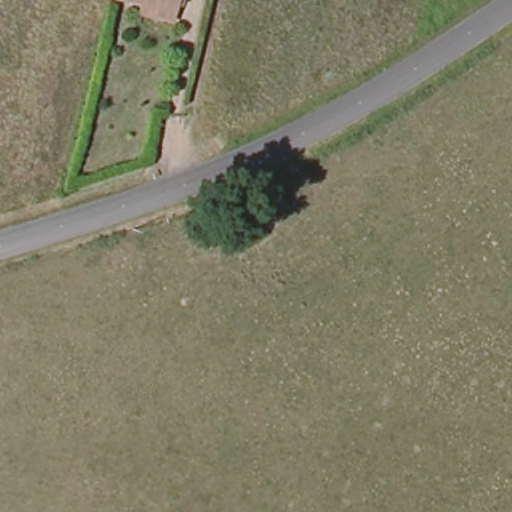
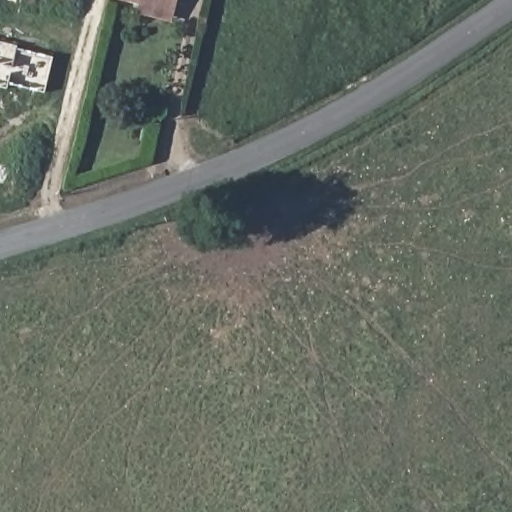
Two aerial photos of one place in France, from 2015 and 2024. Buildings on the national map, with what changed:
unchanged [(141,18),(143,8),(106,0),(177,0),(173,15),(170,25),(141,18)]
new [(7,88),(0,87),(0,41),(19,44),(18,48),(53,56),(44,93),(9,84),(7,88)]

